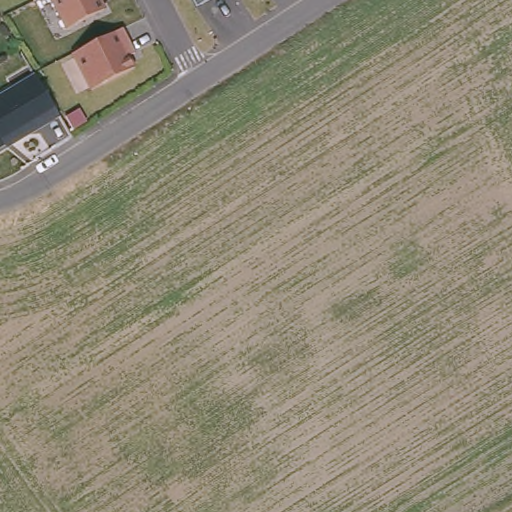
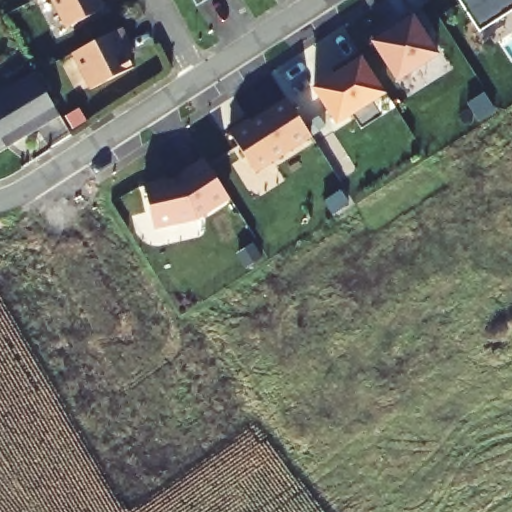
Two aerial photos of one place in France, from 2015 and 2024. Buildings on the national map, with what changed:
unchanged [(107,9),(70,28),(55,0),(102,0),(107,9)]
unchanged [(192,10),(190,6),(187,0),(208,0),(192,10)]
new [(512,10),(480,31),(461,0),(512,0),(512,10)]
new [(414,13),(440,54),(397,81),(371,41),(414,13)]
unchanged [(137,52),(130,55),(136,67),(94,88),(75,52),(98,41),(125,27),(137,52)]
new [(338,124),(315,88),(347,67),(345,62),(360,51),(387,92),(338,124)]
new [(347,67),(336,75),(333,69),(345,62),(347,67)]
unchanged [(62,114),(46,123),(44,119),(0,146),(0,97),(38,74),(62,114)]
new [(256,171),(230,131),(250,118),(252,122),(262,116),(263,113),(287,97),(312,135),(256,171)]
new [(231,200),(198,219),(155,229),(145,184),(176,176),(202,158),(231,200)]

